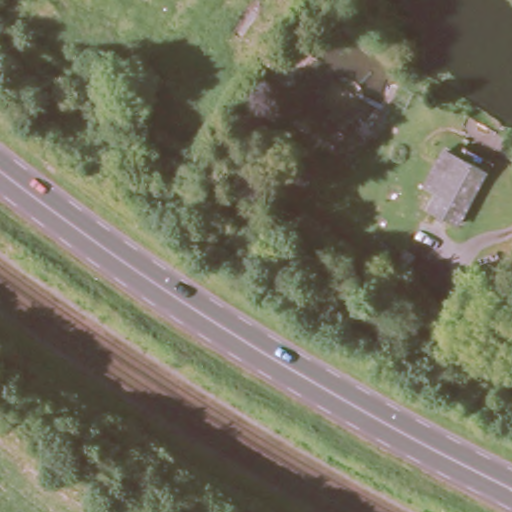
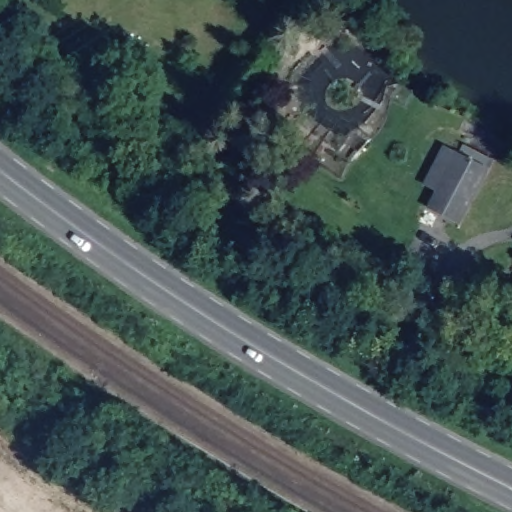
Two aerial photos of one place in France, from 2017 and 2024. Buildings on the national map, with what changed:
unchanged [(434,209),(450,180),(441,175),(453,151),(483,167),(493,172),(464,223),(434,209)]

